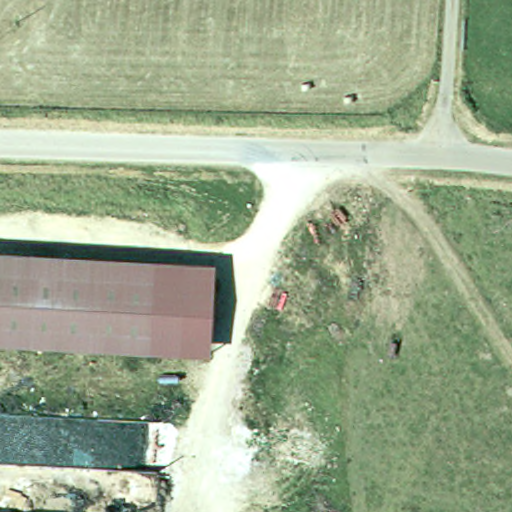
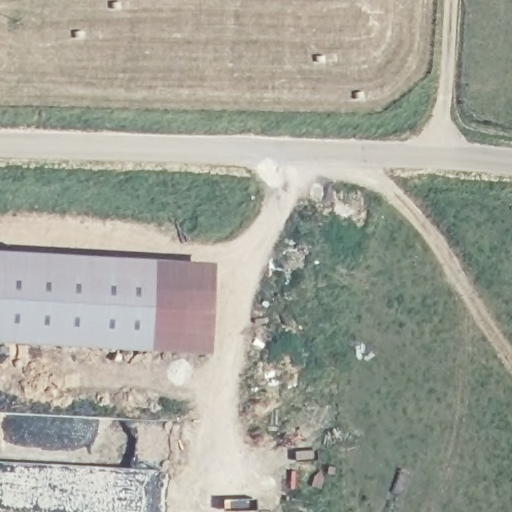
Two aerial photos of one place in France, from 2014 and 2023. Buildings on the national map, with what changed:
unchanged [(0,251),(1,251),(0,262),(0,251)]
unchanged [(0,262),(1,251),(134,257),(182,259),(177,349),(122,346),(0,341),(0,262)]
unchanged [(212,264),(207,353),(177,349),(182,259),(212,264)]

